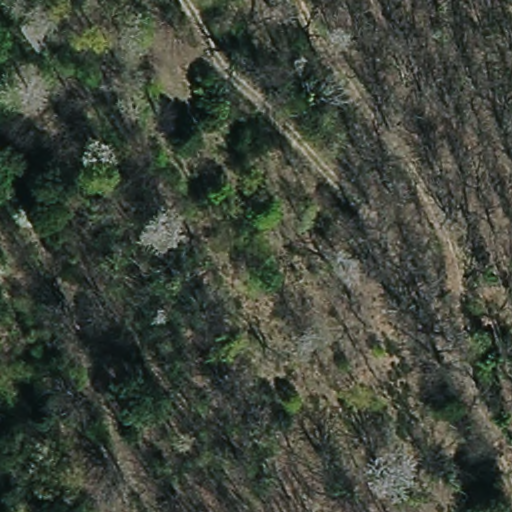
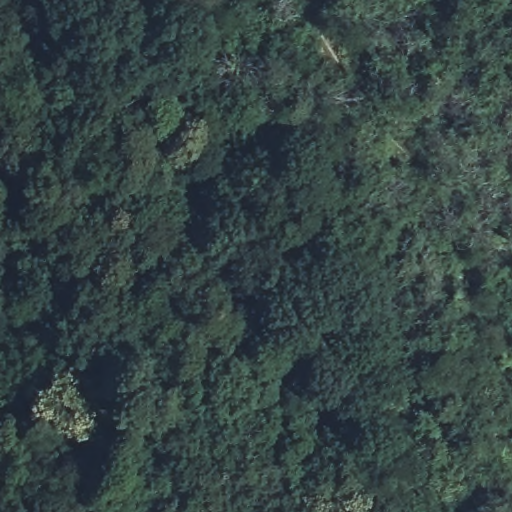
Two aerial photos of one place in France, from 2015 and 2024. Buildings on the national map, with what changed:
unchanged [(35,55),(20,26),(40,12),(57,39),(35,55)]

